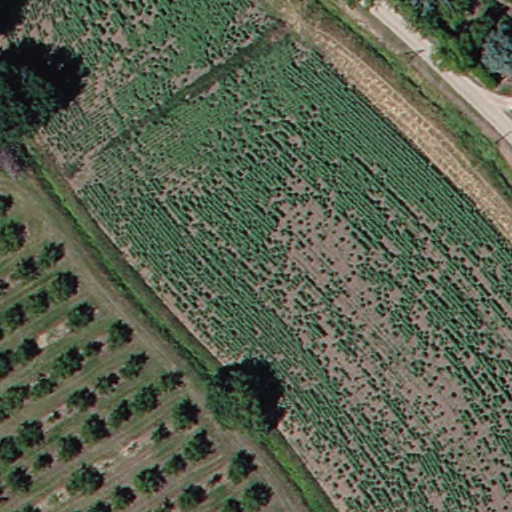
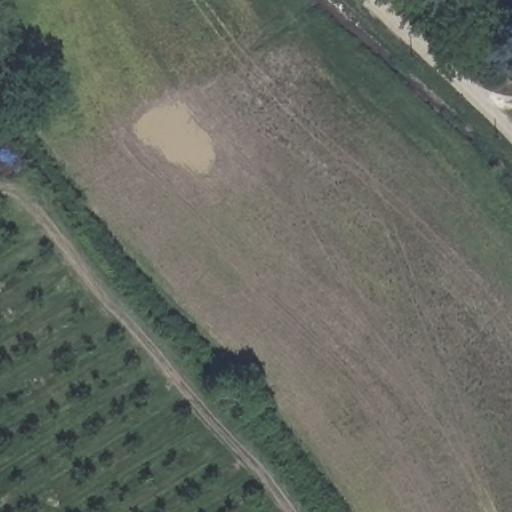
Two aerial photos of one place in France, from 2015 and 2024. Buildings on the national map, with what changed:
[]

